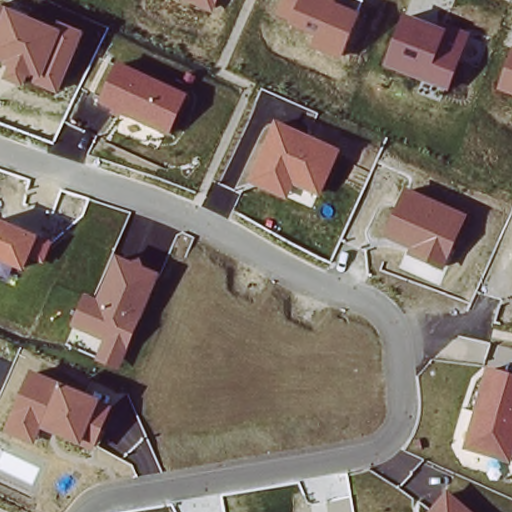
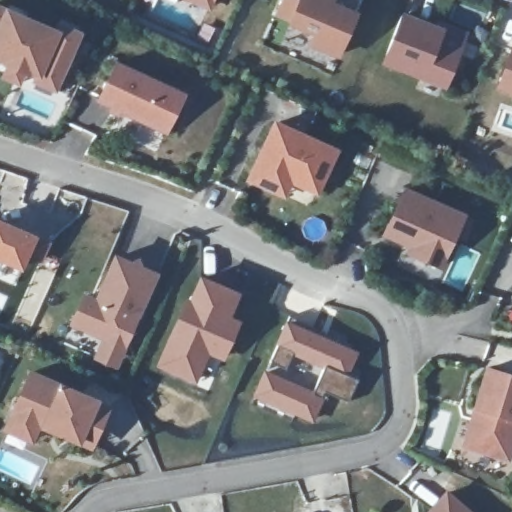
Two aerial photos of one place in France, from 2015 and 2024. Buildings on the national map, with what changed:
unchanged [(185,0),(216,0),(212,11),(185,0)]
unchanged [(335,0),(334,3),(359,13),(340,60),(309,46),(313,36),(290,26),(292,21),(276,14),(282,0),(335,0)]
unchanged [(59,31),(61,23),(82,31),(57,94),(32,84),(34,77),(28,75),(24,87),(3,78),(7,66),(0,63),(0,7),(59,31)]
unchanged [(402,12),(445,29),(447,23),(470,31),(448,89),(383,64),(402,12)]
unchanged [(498,89),(512,48),(512,94),(498,89)]
unchanged [(118,60),(187,94),(168,136),(98,104),(118,60)]
unchanged [(275,119),(340,148),(320,196),(293,185),(287,199),(249,181),(275,119)]
unchanged [(405,186),(468,215),(444,272),(406,254),(409,248),(383,236),(405,186)]
unchanged [(37,235),(52,241),(43,264),(27,258),(22,272),(0,263),(0,220),(37,235)]
unchanged [(84,293),(97,299),(115,256),(133,262),(142,257),(143,266),(159,273),(119,369),(95,359),(103,339),(71,327),(84,293)]
new [(190,299),(202,275),(240,295),(230,316),(241,321),(223,361),(211,355),(197,384),(156,366),(185,298),(190,299)]
new [(314,392),(324,369),(293,354),(286,368),(271,361),(278,347),(274,345),(286,320),(358,354),(346,377),(358,381),(348,402),(327,393),(313,422),(252,397),(263,369),(314,392)]
unchanged [(512,375),(512,457),(511,462),(463,448),(487,367),(512,375)]
unchanged [(30,371),(112,406),(94,450),(42,430),(35,446),(3,431),(30,371)]
unchanged [(445,489),(474,512),(428,512),(445,489)]

